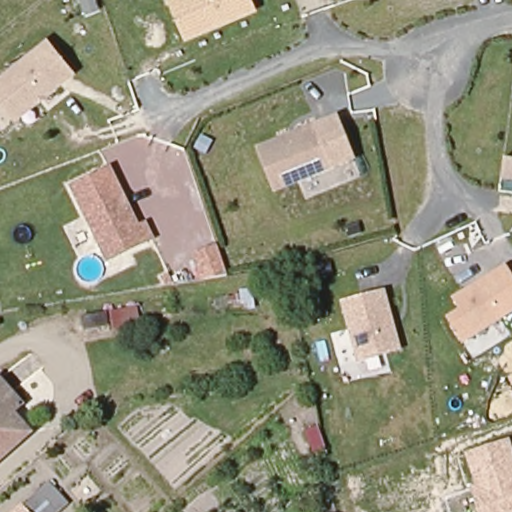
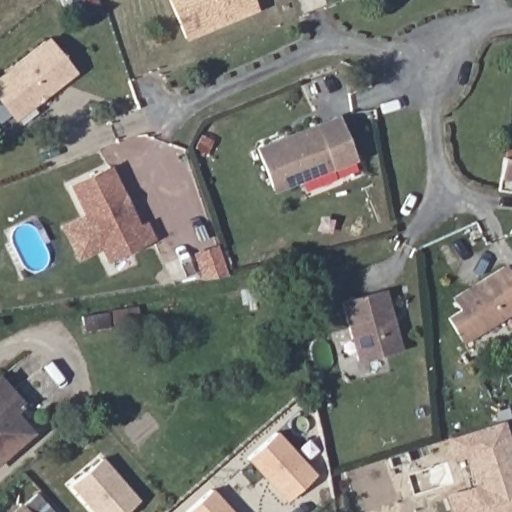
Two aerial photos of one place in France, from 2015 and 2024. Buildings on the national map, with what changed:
unchanged [(253,0),(258,11),(185,41),(169,0),(253,0)]
unchanged [(48,37),(77,72),(15,121),(0,102),(0,75),(48,37)]
unchanged [(314,128),(342,116),(358,159),(331,169),(314,128)]
unchanged [(314,128),(331,169),(272,193),(255,151),(314,128)]
unchanged [(512,172),(502,170),(505,150),(512,152),(512,172)]
unchanged [(110,167),(141,225),(147,224),(154,239),(106,262),(96,241),(77,248),(70,232),(87,224),(69,186),(110,167)]
unchanged [(230,275),(200,281),(190,251),(218,242),(230,275)]
unchanged [(458,309),(452,297),(507,265),(512,274),(512,314),(464,344),(446,316),(458,309)]
unchanged [(340,302),(384,289),(402,350),(358,360),(340,302)]
unchanged [(92,307),(116,303),(118,317),(108,319),(94,322),(93,315),(92,307)]
unchanged [(17,406),(7,417),(27,435),(4,459),(0,463),(0,389),(17,406)]
new [(250,456),(276,433),(314,475),(288,499),(250,456)]
unchanged [(512,512),(478,512),(471,487),(476,486),(465,453),(511,438),(512,443),(512,512)]
new [(126,512),(93,512),(69,484),(100,456),(141,499),(126,512)]
new [(212,489),(233,512),(187,512),(212,489)]
unchanged [(37,512),(20,512),(29,504),(37,512)]

